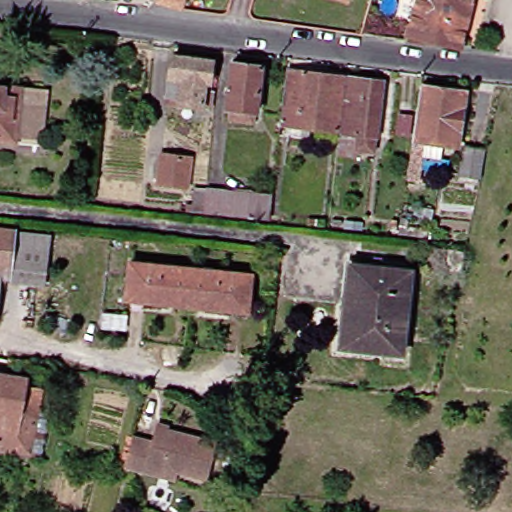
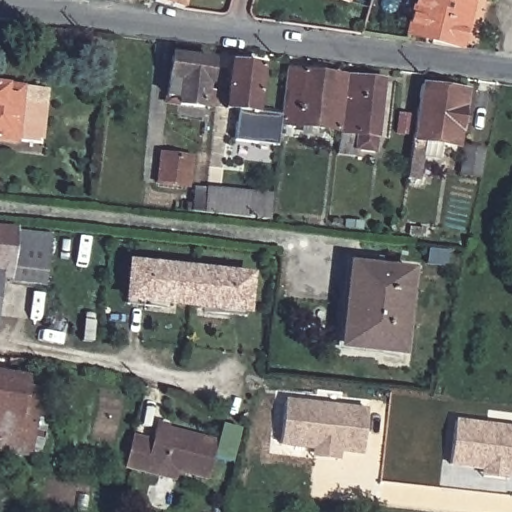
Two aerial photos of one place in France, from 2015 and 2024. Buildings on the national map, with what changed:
unchanged [(155,2),(156,0),(187,0),(184,9),(155,2)]
unchanged [(326,0),(354,0),(352,7),(326,0)]
unchanged [(439,36),(416,30),(423,0),(479,0),(466,48),(439,40),(439,36)]
new [(512,10),(512,28),(481,20),(485,3),(512,10)]
unchanged [(209,61),(206,92),(211,93),(209,107),(204,107),(204,108),(180,105),(180,100),(166,98),(170,57),(209,61)]
unchanged [(249,119),(232,117),(233,104),(229,103),(235,59),(266,63),(261,108),(259,120),(249,119)]
unchanged [(341,132),(300,128),(300,124),(284,122),(290,72),(348,78),(341,132)]
unchanged [(348,136),(354,80),(385,83),(377,154),(359,152),(343,150),(345,136),(348,136)]
unchanged [(461,142),(430,138),(423,177),(410,176),(424,82),(469,88),(461,142)]
unchanged [(42,97),(54,98),(49,130),(30,128),(33,104),(18,103),(14,142),(0,140),(0,86),(43,90),(42,97)]
unchanged [(487,146),(483,173),(465,170),(469,144),(487,146)]
unchanged [(186,187),(157,184),(159,155),(189,158),(186,187)]
unchanged [(206,187),(271,195),(268,220),(204,214),(206,187)]
unchanged [(55,235),(54,242),(43,241),(37,283),(4,279),(0,279),(0,229),(55,235)]
unchanged [(227,315),(227,309),(193,305),(158,302),(157,308),(132,305),(133,296),(136,265),(197,271),(256,276),(253,307),(252,316),(227,315)]
unchanged [(354,265),(413,272),(404,354),(350,346),(345,346),(351,295),(354,265)]
unchanged [(0,317),(0,279),(4,279),(0,317)]
unchanged [(25,418),(35,420),(28,458),(0,454),(0,384),(31,390),(25,418)]
new [(280,443),(285,400),(367,410),(362,452),(338,449),(337,458),(312,455),(313,446),(280,443)]
new [(508,481),(480,478),(481,470),(449,467),(455,420),(512,427),(512,475),(510,475),(508,481)]
unchanged [(132,470),(140,439),(160,444),(164,430),(224,444),(216,481),(181,473),(179,482),(154,476),(132,470)]

